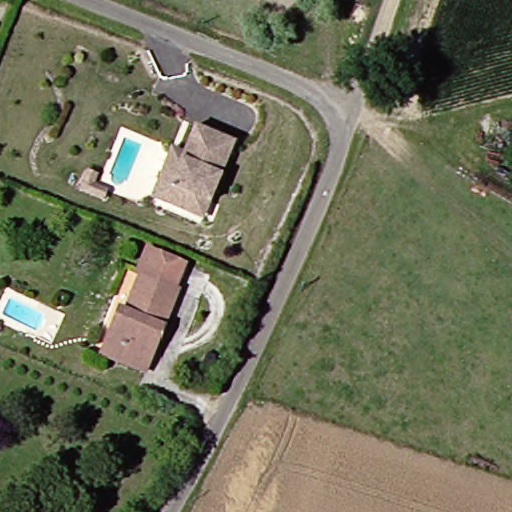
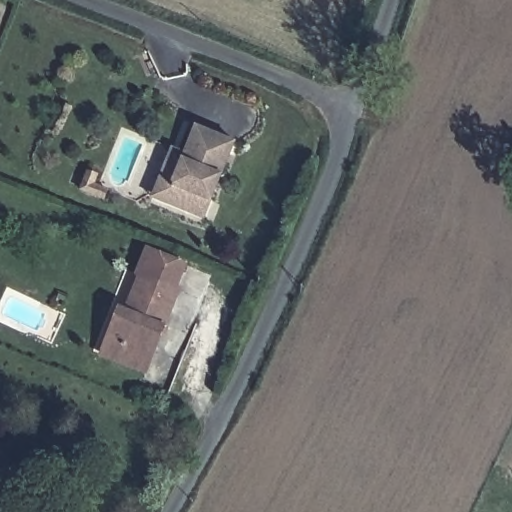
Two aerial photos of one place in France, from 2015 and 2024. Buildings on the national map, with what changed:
unchanged [(206,216),(154,195),(174,147),(186,152),(197,124),(237,140),(206,216)]
unchanged [(96,355),(101,341),(114,308),(121,311),(135,275),(132,275),(141,250),(180,265),(170,290),(172,290),(145,360),(139,372),(96,355)]

